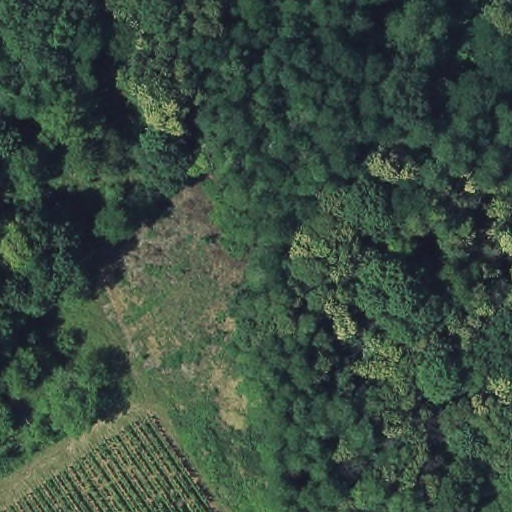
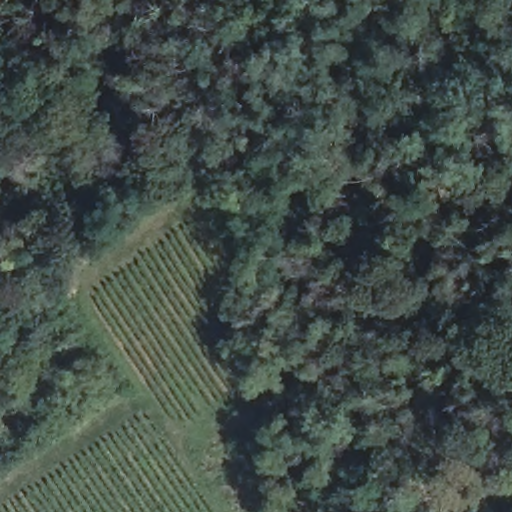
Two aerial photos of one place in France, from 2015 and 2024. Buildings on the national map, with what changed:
[]

